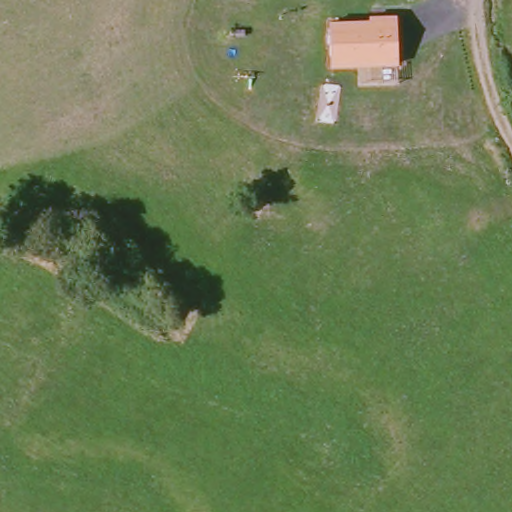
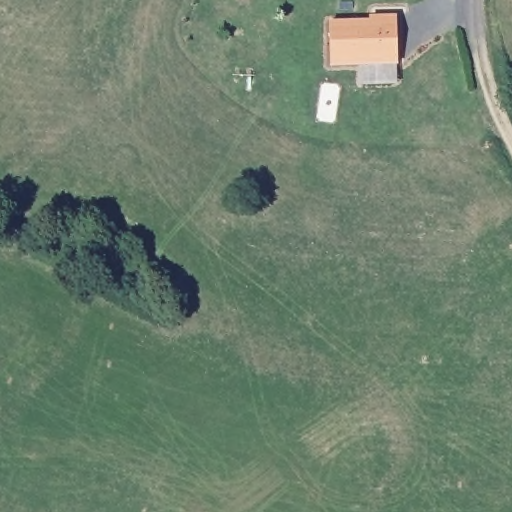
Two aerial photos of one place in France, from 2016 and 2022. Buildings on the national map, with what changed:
unchanged [(330,20),(370,20),(370,15),(397,14),(398,65),(330,67),(330,20)]

